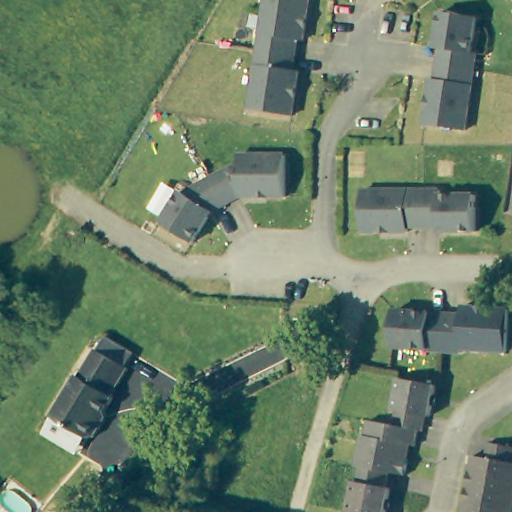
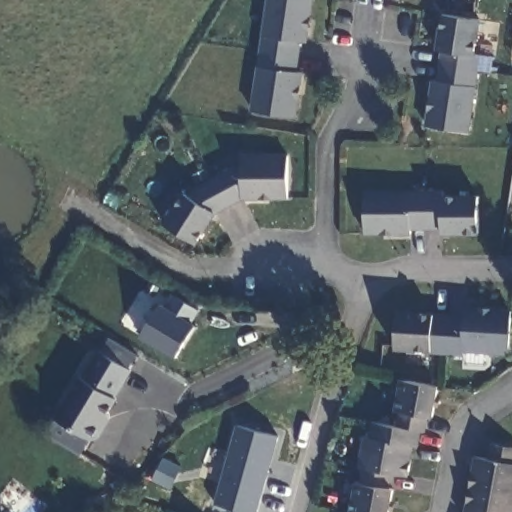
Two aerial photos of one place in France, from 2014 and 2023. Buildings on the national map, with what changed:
unchanged [(294,116),(250,107),(268,0),(312,0),(294,116)]
unchanged [(480,19),(476,55),(481,56),(469,137),(424,129),(431,84),(436,84),(442,46),(436,45),(442,10),(480,19)]
unchanged [(283,154),(284,196),(236,195),(208,211),(190,237),(156,217),(178,185),(184,187),(237,160),(238,152),(283,154)]
unchanged [(447,195),(484,195),(482,231),(446,233),(446,225),(408,224),(407,232),(365,231),(366,186),(447,187),(447,195)]
new [(191,320),(196,323),(176,357),(139,335),(161,300),(166,304),(172,293),(199,308),(191,320)]
unchanged [(512,337),(510,351),(465,347),(465,352),(446,350),(394,345),(399,307),(450,312),(465,313),(465,306),(512,309),(512,337)]
unchanged [(118,404),(121,406),(106,432),(109,433),(100,449),(59,426),(83,384),(86,386),(101,360),(103,360),(110,346),(139,363),(131,376),(133,377),(118,404)]
unchanged [(357,478),(358,461),(353,460),(359,422),(367,423),(371,412),(395,416),(398,405),(394,404),(398,375),(437,382),(433,409),(426,411),(424,424),(418,423),(415,438),(408,437),(404,470),(386,467),(383,484),(389,485),(384,512),(345,512),(350,477),(357,478)]
new [(249,512),(213,502),(235,425),(278,436),(257,512),(249,512)]
unchanged [(512,512),(471,512),(481,458),(489,459),(492,440),(512,445),(512,512)]

